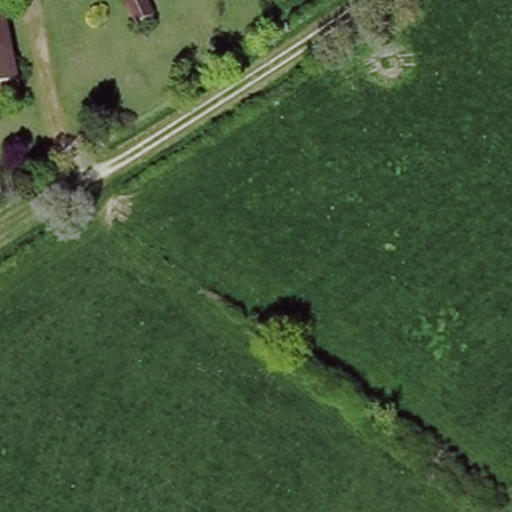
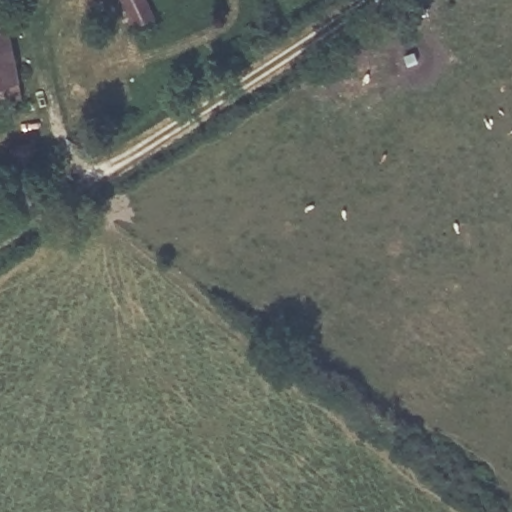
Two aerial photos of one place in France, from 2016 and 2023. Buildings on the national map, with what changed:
unchanged [(0,101),(0,0),(3,0),(18,98),(0,101)]
unchanged [(134,28),(123,0),(144,0),(152,21),(134,28)]

